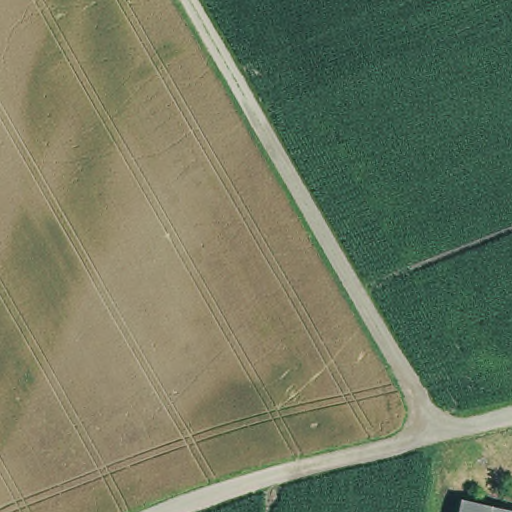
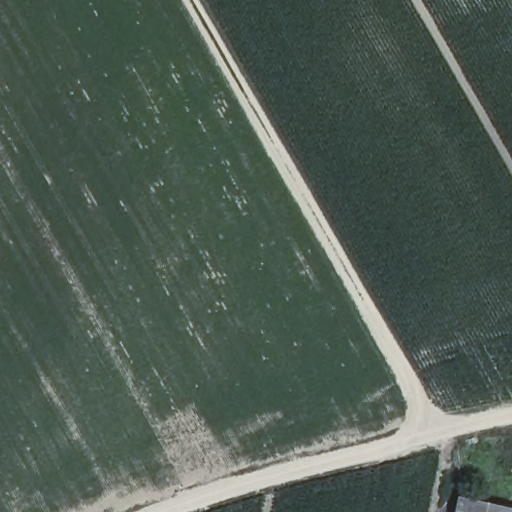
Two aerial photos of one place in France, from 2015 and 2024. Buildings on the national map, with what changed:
unchanged [(459,491),(512,502),(512,512),(455,512),(459,491)]

